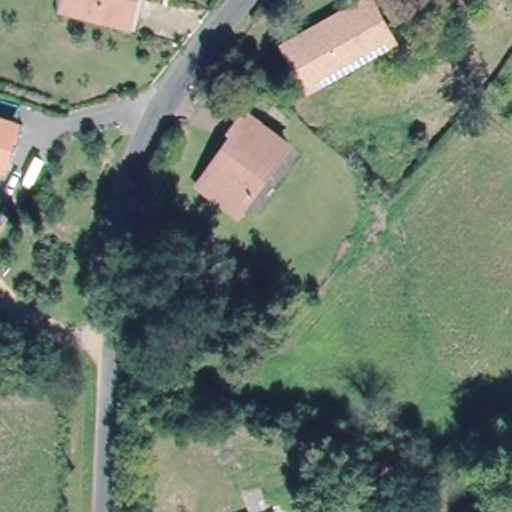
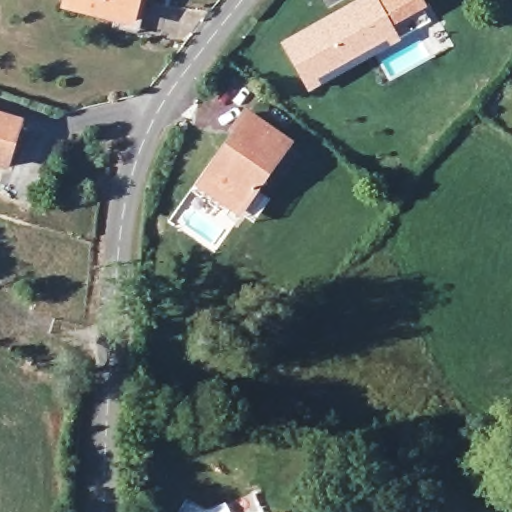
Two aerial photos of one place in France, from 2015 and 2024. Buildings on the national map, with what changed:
unchanged [(129,21),(66,5),(67,0),(134,0),(129,21)]
unchanged [(366,0),(377,0),(399,41),(379,51),(370,36),(342,52),(350,67),(312,87),(288,42),(361,3),(366,0)]
new [(377,0),(422,0),(427,10),(392,28),(377,0)]
unchanged [(4,168),(0,167),(0,117),(18,122),(4,168)]
unchanged [(193,192),(198,184),(227,142),(224,139),(238,119),(282,150),(240,211),(234,219),(193,192)]

